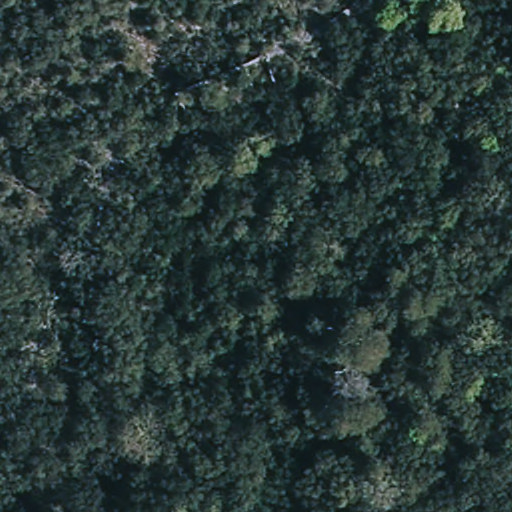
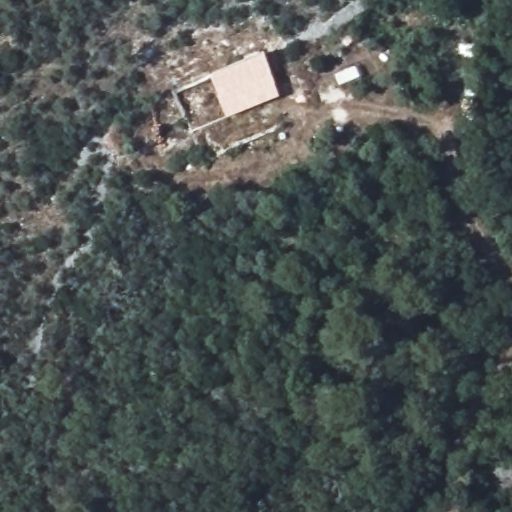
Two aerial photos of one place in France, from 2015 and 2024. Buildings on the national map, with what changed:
new [(211,78),(265,55),(280,97),(227,119),(211,78)]

